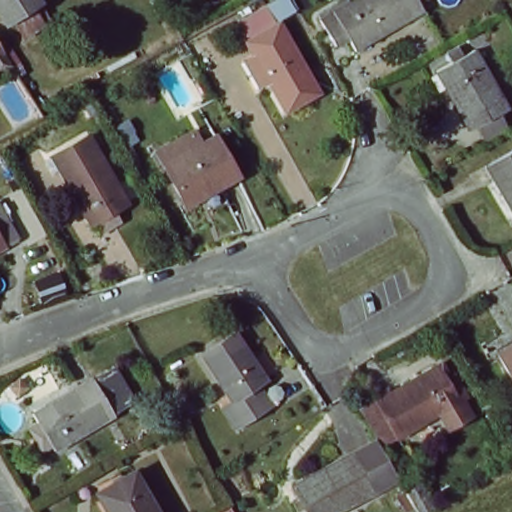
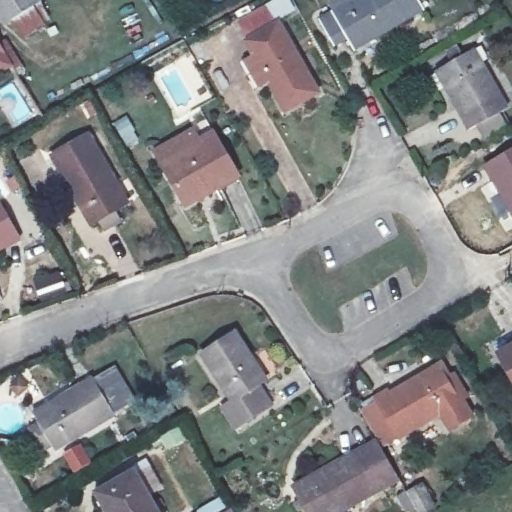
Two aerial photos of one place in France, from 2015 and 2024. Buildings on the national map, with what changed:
unchanged [(0,6),(0,0),(38,0),(41,4),(10,21),(0,6)]
unchanged [(346,40),(333,49),(320,23),(359,0),(412,0),(426,0),(416,5),(421,14),(353,51),(346,40)]
unchanged [(247,61),(258,55),(250,44),(254,41),(243,25),(272,7),(282,25),(321,87),(289,105),(275,84),(264,90),(247,61)]
unchanged [(0,71),(0,45),(12,64),(0,71)]
unchanged [(477,54),(511,111),(474,131),(442,73),(477,54)]
unchanged [(108,224),(103,214),(95,219),(58,155),(92,136),(131,199),(120,205),(125,213),(108,224)]
unchanged [(218,138),(239,175),(189,205),(167,168),(218,138)]
unchanged [(512,154),(512,206),(489,168),(512,154)]
unchanged [(22,239),(0,251),(0,206),(2,205),(22,239)]
unchanged [(242,335),(270,380),(263,385),(277,407),(239,430),(226,407),(234,402),(206,356),(242,335)]
unchanged [(512,351),(512,369),(505,356),(512,351)]
unchanged [(379,439),(363,408),(380,398),(438,365),(459,400),(466,397),(474,412),(452,424),(443,410),(401,435),(383,445),(379,439)]
unchanged [(34,432),(45,426),(38,415),(96,380),(115,370),(135,405),(116,416),(58,450),(56,447),(46,452),(34,432)]
unchanged [(358,458),(376,488),(336,512),(307,512),(297,495),(358,458)]
unchanged [(140,472),(163,512),(113,512),(103,495),(140,472)]

